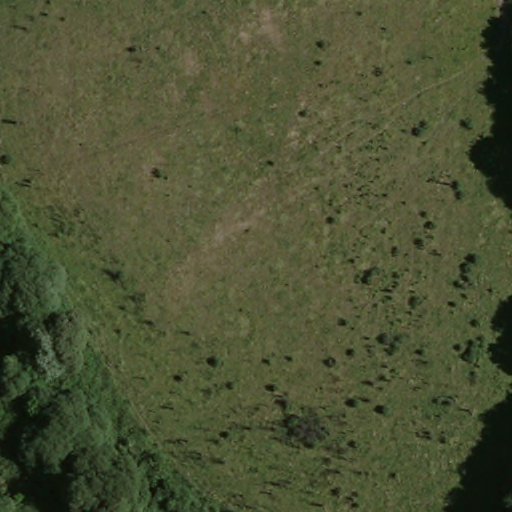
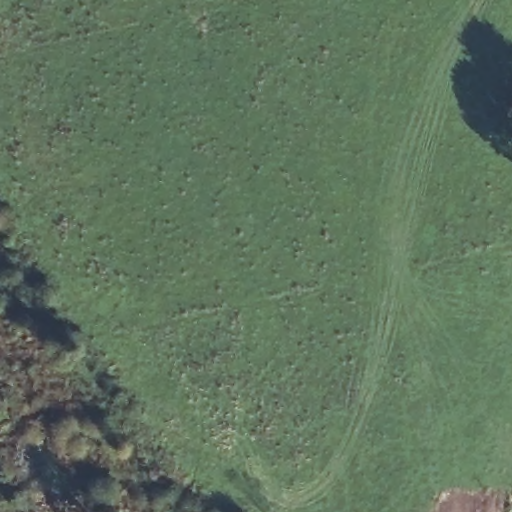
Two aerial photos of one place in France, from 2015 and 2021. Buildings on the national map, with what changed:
[]

